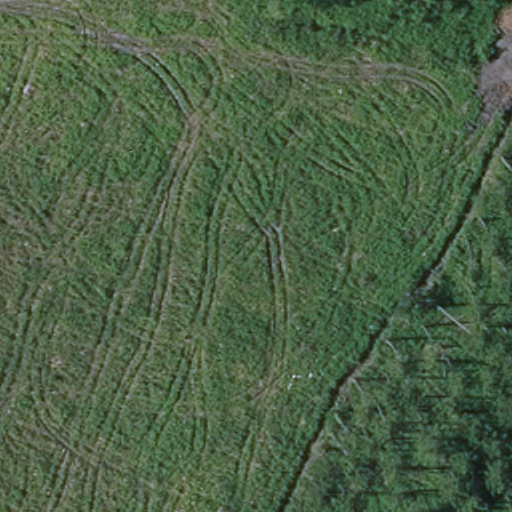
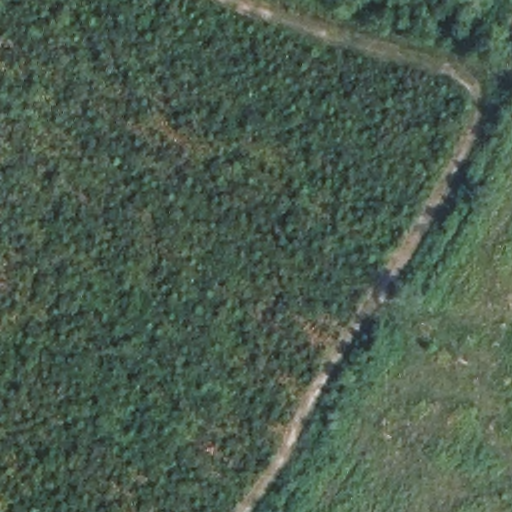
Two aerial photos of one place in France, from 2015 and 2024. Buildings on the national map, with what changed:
[]

